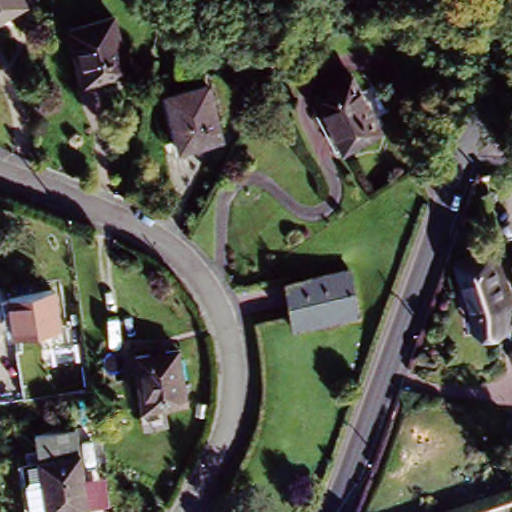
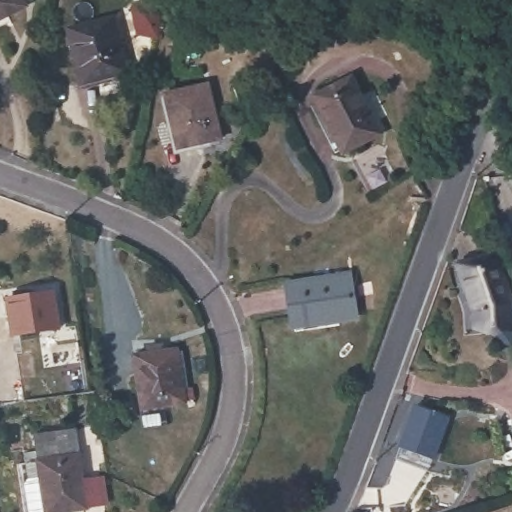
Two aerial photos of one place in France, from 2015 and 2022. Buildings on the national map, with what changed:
unchanged [(0,11),(0,0),(18,0),(19,1),(0,11)]
unchanged [(116,72),(79,86),(57,27),(94,13),(116,72)]
unchanged [(380,137),(341,153),(315,96),(354,79),(380,137)]
unchanged [(201,142),(167,153),(149,96),(184,85),(201,142)]
unchanged [(507,292),(510,312),(474,317),(472,298),(458,256),(492,245),(507,292)]
unchanged [(349,318),(286,327),(280,287),(343,277),(349,318)]
unchanged [(62,336),(14,343),(9,307),(55,300),(62,336)]
unchanged [(184,402),(144,408),(135,354),(176,348),(184,402)]
new [(430,470),(397,457),(398,446),(412,404),(450,418),(435,460),(430,470)]
unchanged [(104,477),(108,503),(88,507),(58,512),(29,512),(22,462),(42,458),(38,433),(75,428),(80,452),(84,481),(104,477)]

